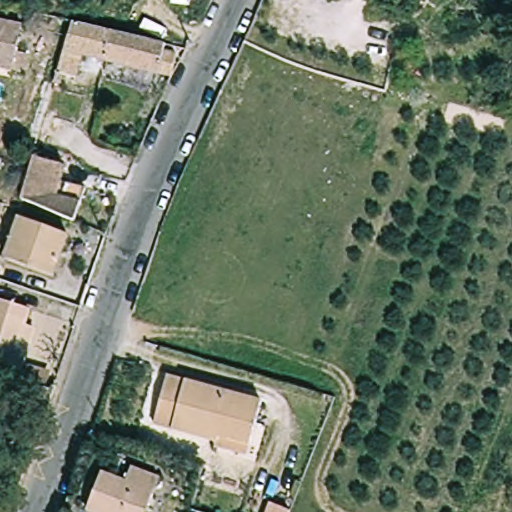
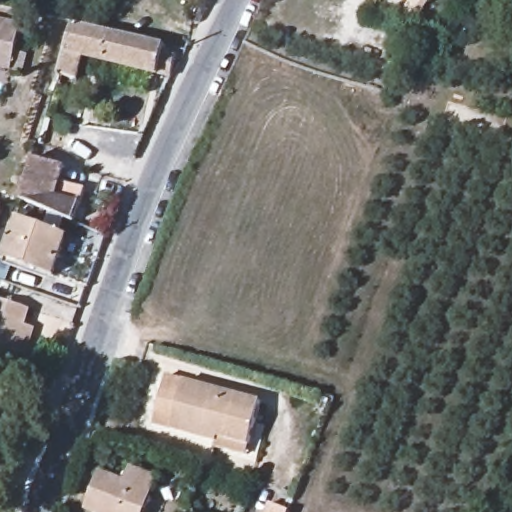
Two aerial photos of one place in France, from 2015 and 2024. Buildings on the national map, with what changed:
unchanged [(24,51),(30,52),(26,72),(0,68),(0,18),(30,24),(24,51)]
unchanged [(170,49),(169,59),(180,62),(176,81),(83,60),(76,82),(62,79),(60,86),(55,85),(74,27),(95,32),(170,49)]
unchanged [(71,210),(45,201),(12,187),(24,146),(57,157),(53,172),(81,178),(71,210)]
unchanged [(70,238),(54,280),(2,263),(16,221),(70,238)]
unchanged [(14,361),(0,356),(0,297),(31,307),(27,322),(39,325),(27,364),(14,361)]
unchanged [(207,450),(210,441),(147,419),(161,374),(257,406),(250,428),(263,433),(252,465),(207,450)]
unchanged [(145,512),(86,512),(83,511),(93,473),(122,482),(126,469),(155,478),(145,512)]
unchanged [(278,498),(296,507),(294,512),(271,512),(278,498)]

